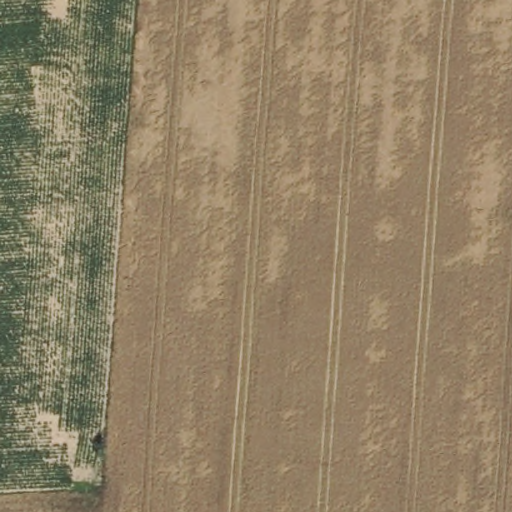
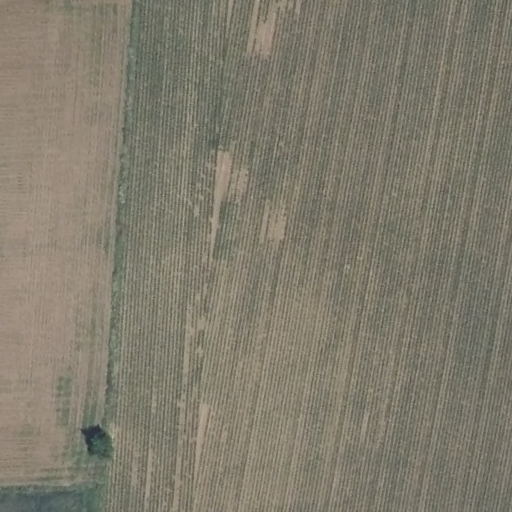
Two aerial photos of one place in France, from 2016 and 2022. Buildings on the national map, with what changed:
[]

